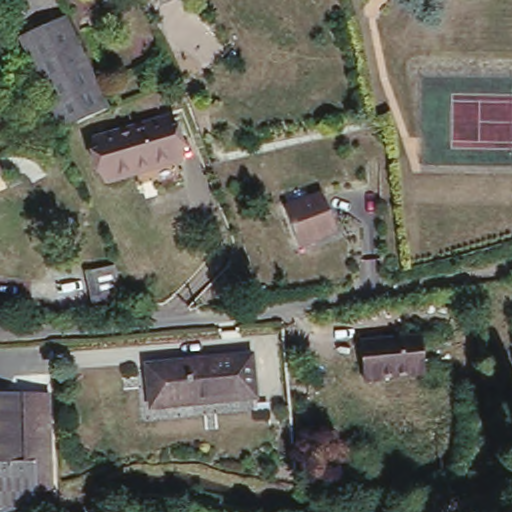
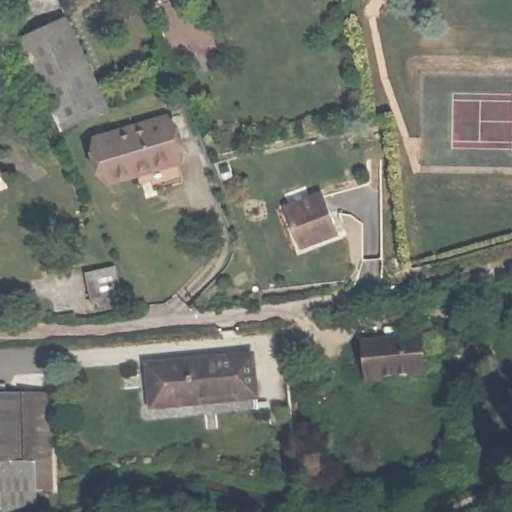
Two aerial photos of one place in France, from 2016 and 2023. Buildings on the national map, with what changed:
unchanged [(66,17),(76,40),(59,49),(69,70),(42,82),(21,37),(66,17)]
unchanged [(42,82),(69,70),(59,49),(76,40),(107,109),(63,129),(42,82)]
unchanged [(108,179),(95,136),(166,115),(178,158),(108,179)]
unchanged [(5,175),(0,177),(0,163),(5,175)]
unchanged [(304,248),(289,209),(327,194),(343,233),(304,248)]
unchanged [(91,305),(84,273),(113,267),(121,298),(91,305)]
unchanged [(388,377),(388,380),(369,381),(365,343),(423,337),(427,373),(388,377)]
unchanged [(150,398),(147,367),(251,356),(256,400),(169,409),(152,411),(150,398)]
unchanged [(51,391),(53,485),(36,485),(36,497),(0,510),(0,393),(51,391)]

